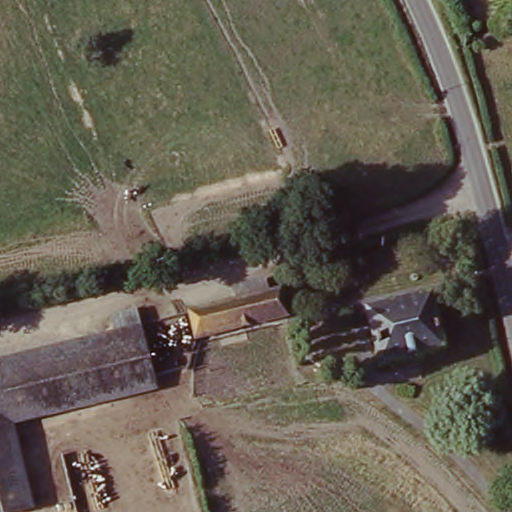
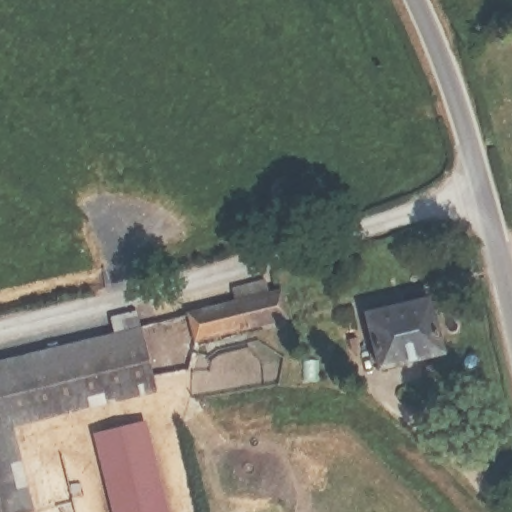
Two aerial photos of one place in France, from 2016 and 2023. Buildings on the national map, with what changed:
unchanged [(285,323),(195,345),(188,318),(234,307),(231,295),(262,287),(265,301),(278,297),(285,323)]
unchanged [(429,305),(441,356),(379,372),(366,320),(429,305)]
unchanged [(144,342),(0,378),(0,362),(140,327),(144,342)]
unchanged [(156,390),(11,427),(31,511),(29,512),(0,512),(0,378),(144,342),(156,390)]
new [(145,420),(168,512),(111,512),(91,433),(145,420)]

